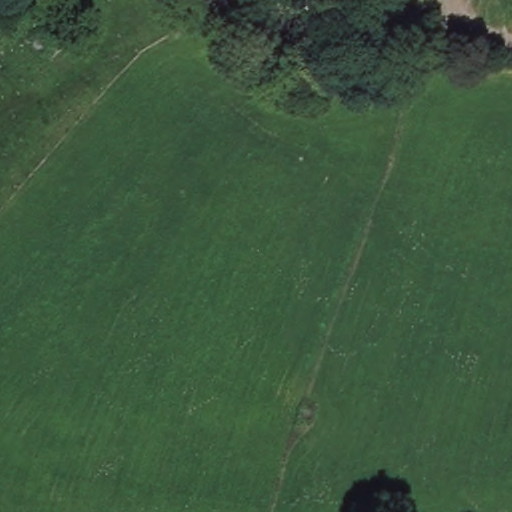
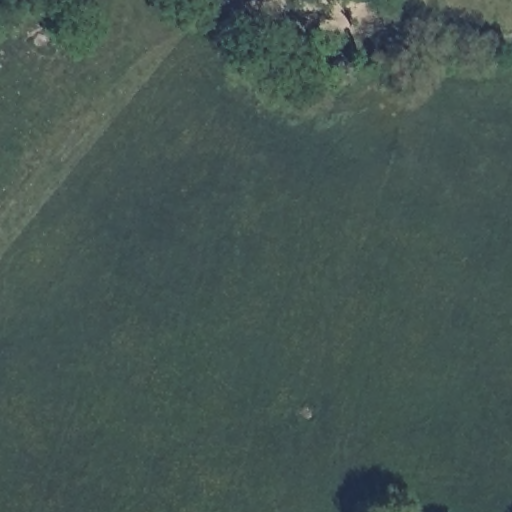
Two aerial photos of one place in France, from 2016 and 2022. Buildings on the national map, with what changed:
unchanged [(380,5),(382,0),(405,0),(398,15),(380,5)]

